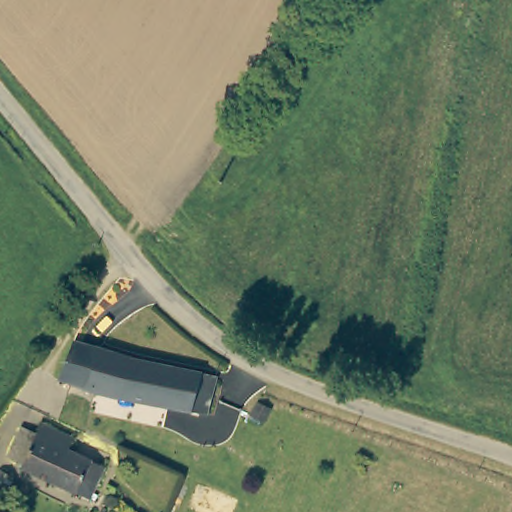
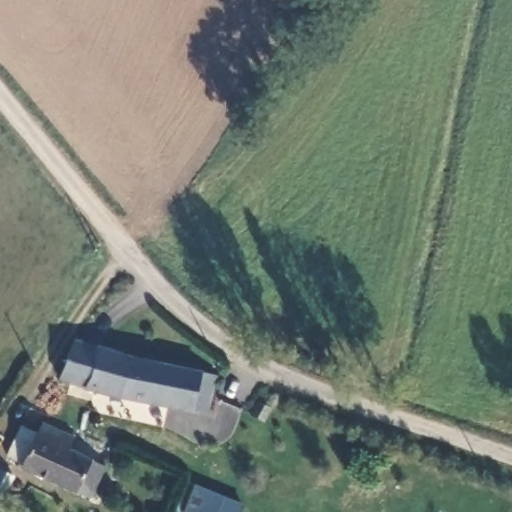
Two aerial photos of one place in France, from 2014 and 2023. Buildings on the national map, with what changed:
unchanged [(205,415),(154,405),(102,392),(59,378),(73,340),(125,356),(177,368),(215,375),(205,415)]
unchanged [(72,437),(67,448),(105,466),(89,498),(21,466),(22,463),(7,456),(20,425),(37,433),(42,423),(72,437)]
unchanged [(12,476),(0,496),(0,470),(12,476)]
new [(244,505),(240,512),(184,512),(195,485),(244,505)]

